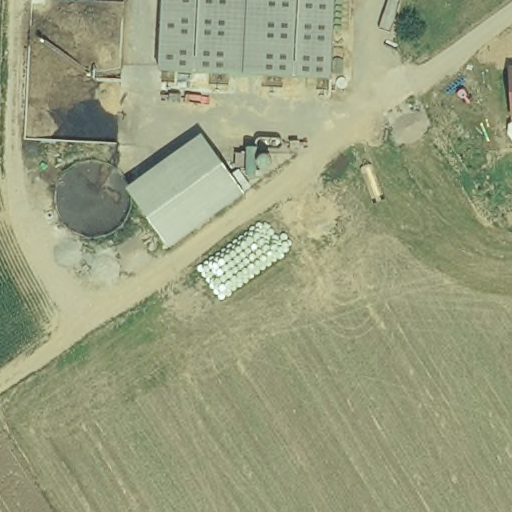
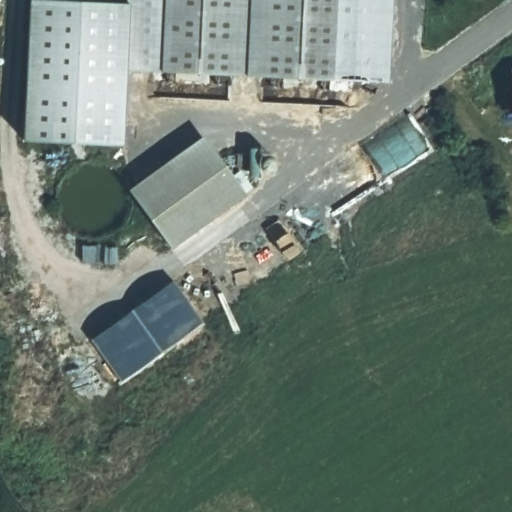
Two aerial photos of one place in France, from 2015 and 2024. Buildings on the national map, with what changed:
new [(129,68),(126,145),(25,140),(31,0),(52,0),(133,4),(129,68)]
new [(133,4),(126,4),(127,0),(171,0),(168,66),(129,68),(133,4)]
unchanged [(168,66),(171,0),(398,0),(395,76),(168,66)]
new [(170,249),(128,189),(203,134),(245,193),(170,249)]
new [(116,244),(116,263),(82,262),(81,244),(116,244)]
new [(171,279),(203,322),(120,383),(89,338),(171,279)]

